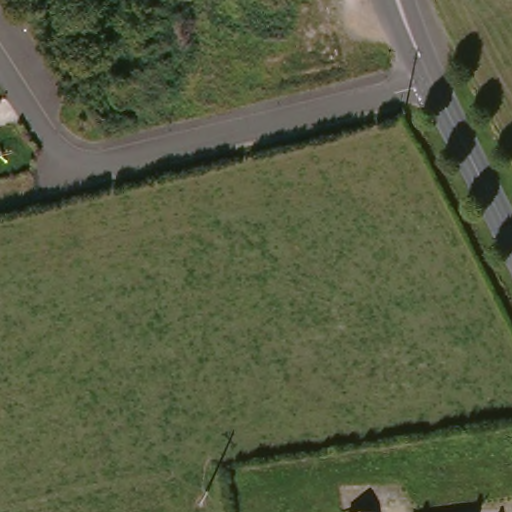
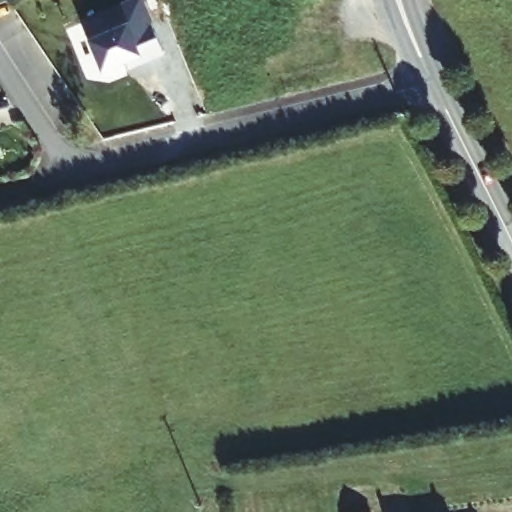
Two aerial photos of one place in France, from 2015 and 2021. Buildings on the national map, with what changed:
new [(156,24),(153,25),(165,55),(131,70),(127,64),(102,74),(87,42),(78,21),(130,0),(144,0),(156,24)]
unchanged [(371,512),(368,512),(371,511),(371,512)]

